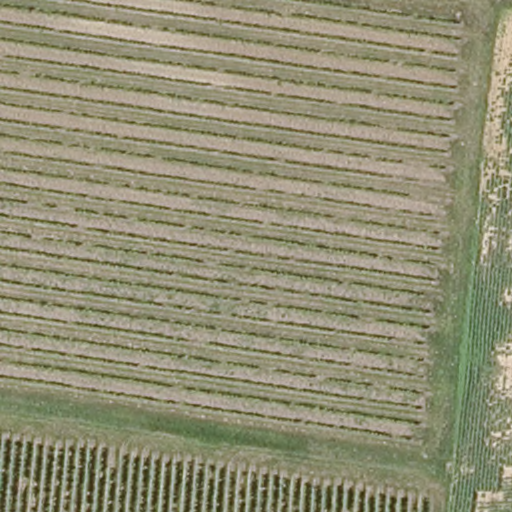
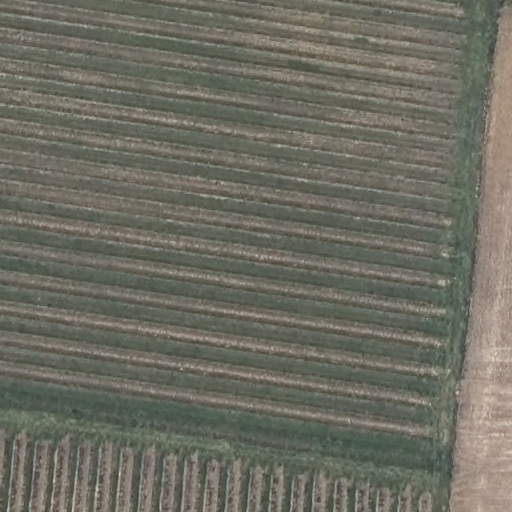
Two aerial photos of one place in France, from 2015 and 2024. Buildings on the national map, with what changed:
[]

